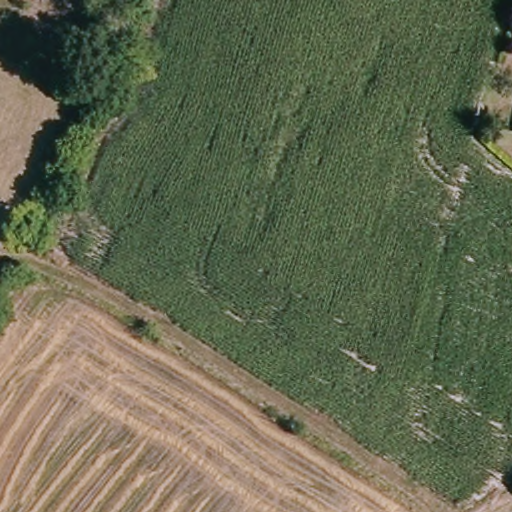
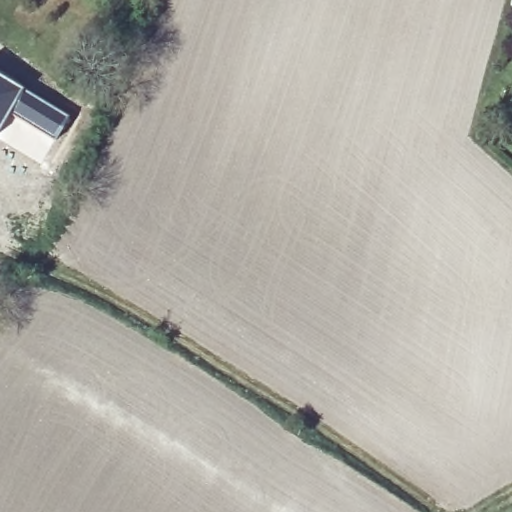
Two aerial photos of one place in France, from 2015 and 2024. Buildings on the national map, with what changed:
new [(69,115),(55,139),(9,113),(0,128),(0,76),(69,115)]

